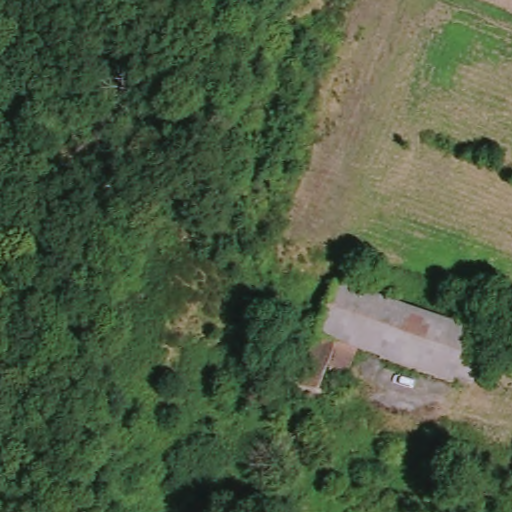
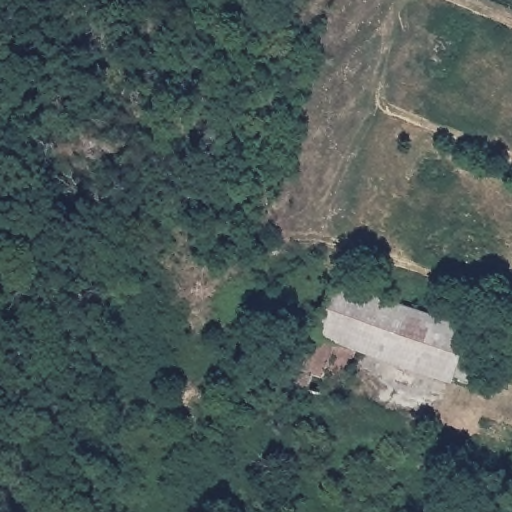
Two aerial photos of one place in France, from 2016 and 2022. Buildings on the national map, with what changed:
unchanged [(487,339),(471,385),(451,378),(449,385),(349,351),(308,336),(325,284),(487,339)]
unchanged [(308,336),(349,351),(333,403),(290,387),(308,336)]

